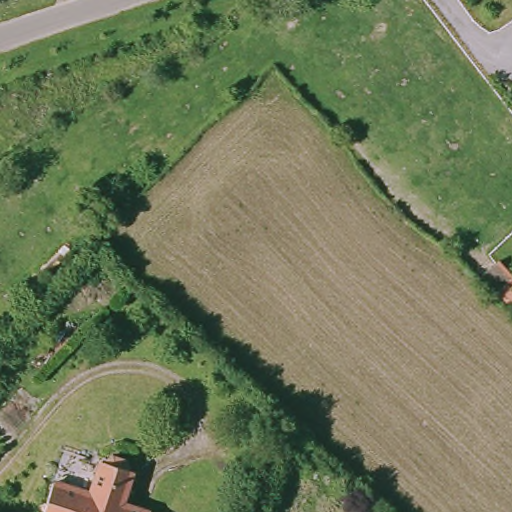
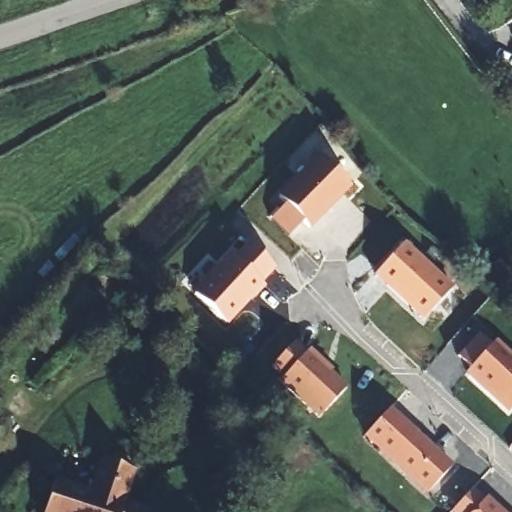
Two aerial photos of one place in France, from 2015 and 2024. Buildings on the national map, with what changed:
new [(270,220),(285,205),(277,197),(318,155),(352,188),(310,230),(302,222),(288,237),(270,220)]
new [(228,252),(233,256),(247,241),(276,268),(262,283),(265,286),(227,326),(191,292),(228,252)]
new [(372,277),(403,243),(452,288),(422,321),(372,277)]
new [(486,278),(500,266),(512,280),(512,308),(486,278)]
new [(470,368),(457,356),(477,334),(490,345),(492,344),(512,363),(512,408),(507,414),(463,375),(470,368)]
new [(278,383),(281,380),(270,368),(295,340),(307,352),(309,350),(332,371),(331,373),(346,387),(317,419),(278,383)]
new [(362,438),(390,408),(452,466),(425,495),(362,438)]
unchanged [(92,493),(102,462),(113,452),(131,458),(134,473),(123,504),(146,512),(42,512),(53,482),(92,493)]
new [(472,490),(483,500),(487,497),(503,512),(450,512),(472,490)]

